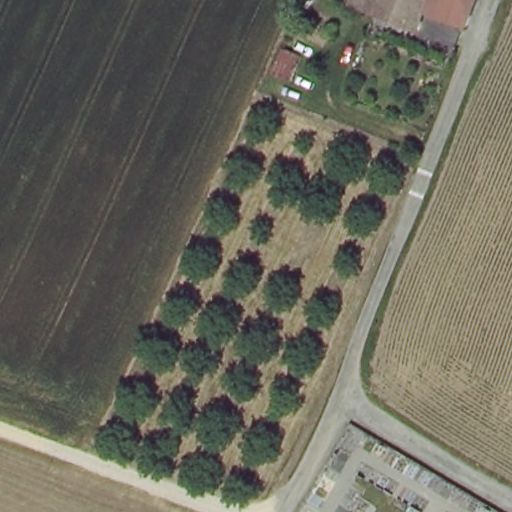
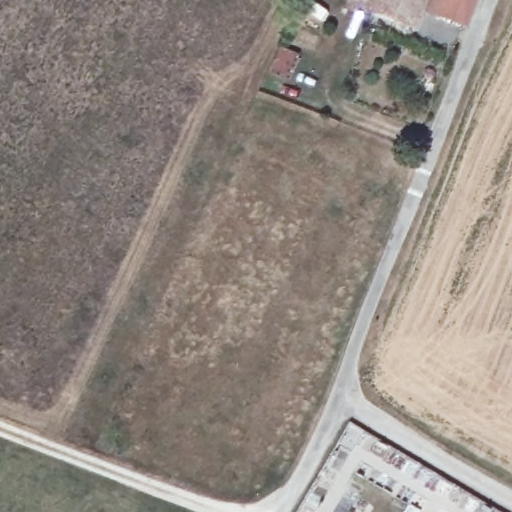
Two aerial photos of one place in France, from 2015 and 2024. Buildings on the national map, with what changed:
unchanged [(421,5),(412,29),(346,1),(346,0),(437,0),(433,10),(421,5)]
unchanged [(472,0),(464,23),(433,10),(437,0),(472,0)]
unchanged [(303,57),(292,84),(274,76),(285,50),(303,57)]

